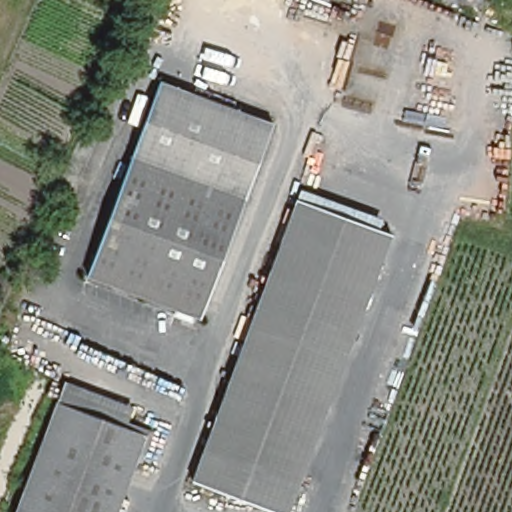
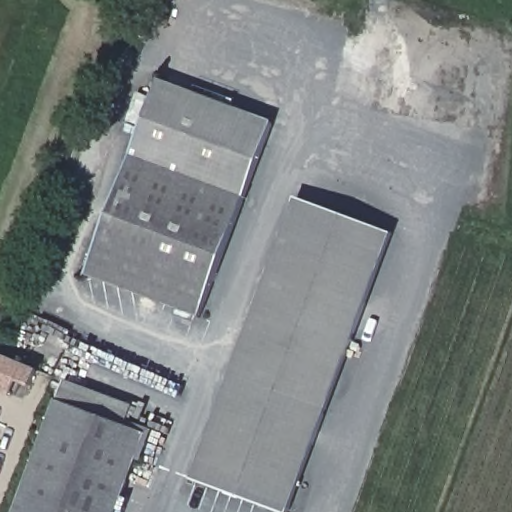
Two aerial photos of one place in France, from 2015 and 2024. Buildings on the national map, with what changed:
unchanged [(272,125),(267,136),(192,319),(82,273),(157,89),(161,79),(272,125)]
unchanged [(286,512),(277,512),(266,508),(190,480),(296,199),(371,227),(391,234),(286,512)]
new [(31,384),(17,379),(11,393),(0,388),(0,352),(38,369),(31,384)]
unchanged [(53,407),(120,432),(122,427),(147,436),(136,467),(130,465),(112,512),(13,512),(14,511),(53,407)]

